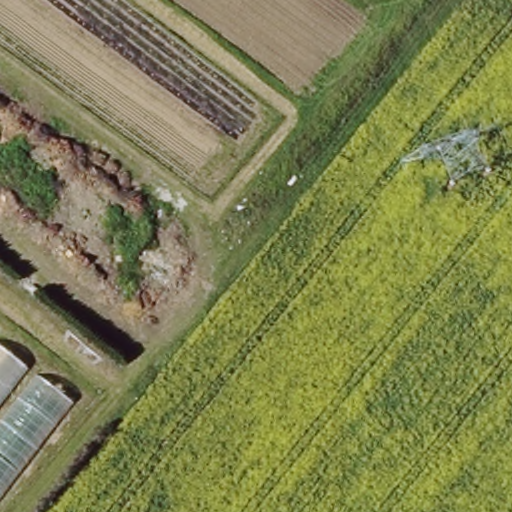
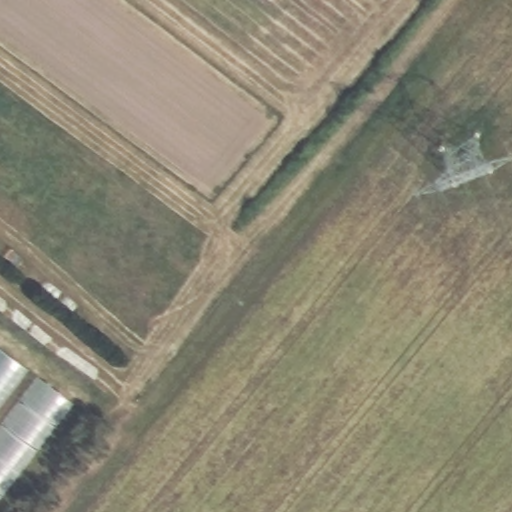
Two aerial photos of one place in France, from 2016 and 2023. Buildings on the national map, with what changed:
unchanged [(63,402),(0,485),(0,353),(63,402)]

